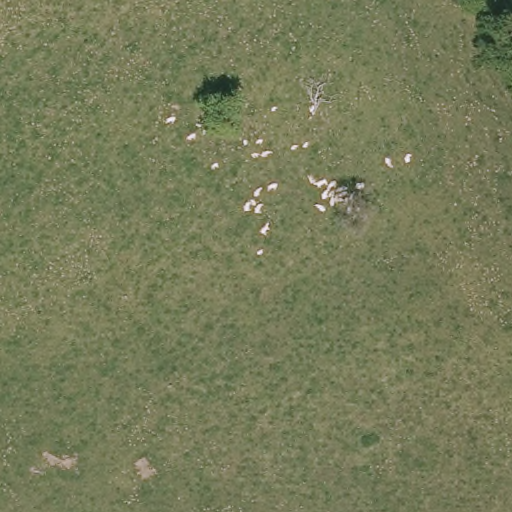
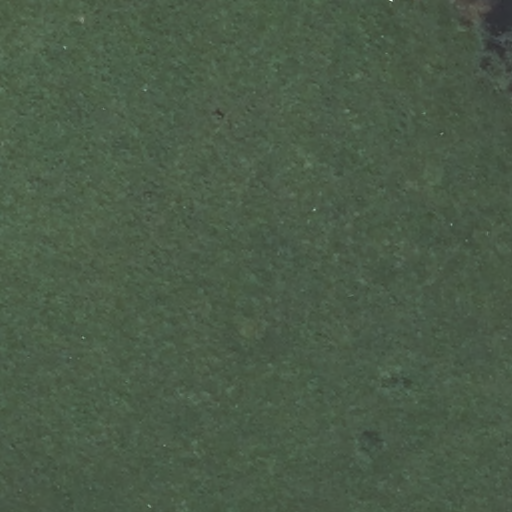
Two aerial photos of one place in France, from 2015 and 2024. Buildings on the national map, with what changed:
[]

